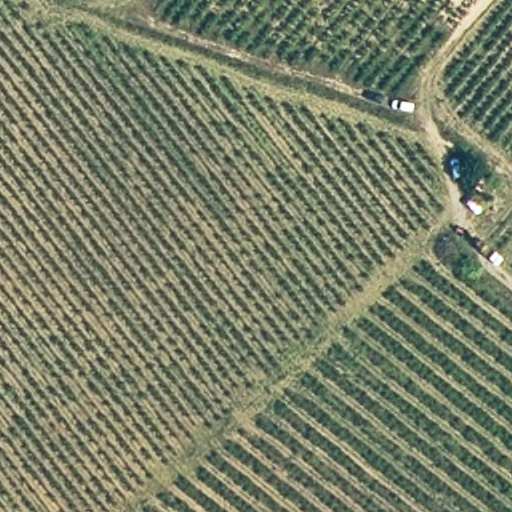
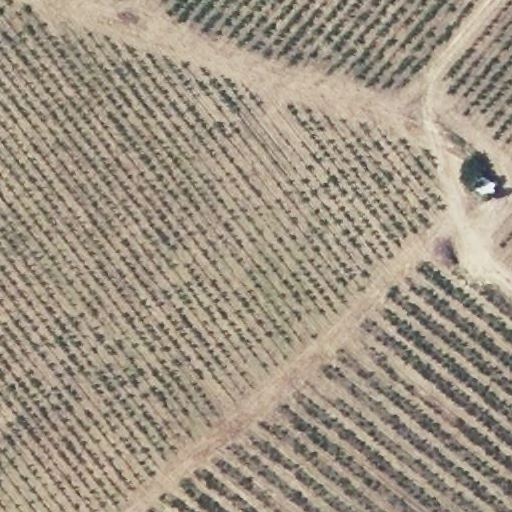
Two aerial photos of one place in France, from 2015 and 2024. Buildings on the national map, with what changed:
unchanged [(484,197),(470,191),(474,177),(490,182),(484,197)]

